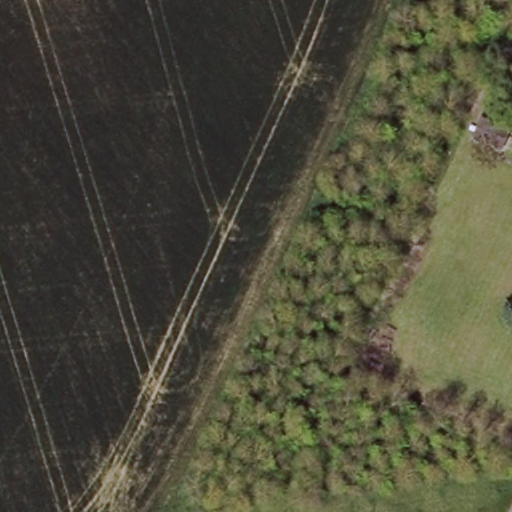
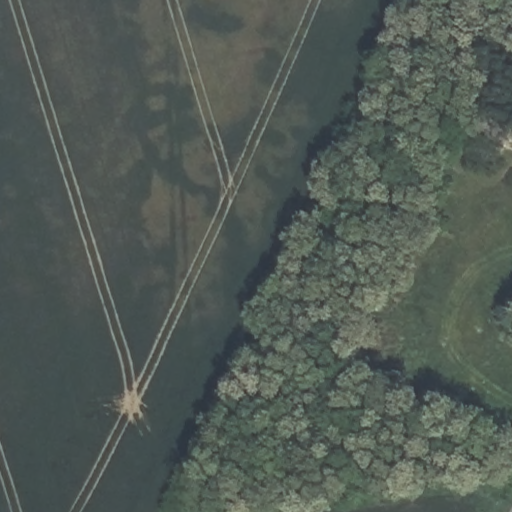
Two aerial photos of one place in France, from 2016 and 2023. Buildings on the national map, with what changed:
unchanged [(512,137),(505,153),(477,140),(487,120),(512,131),(512,137)]

